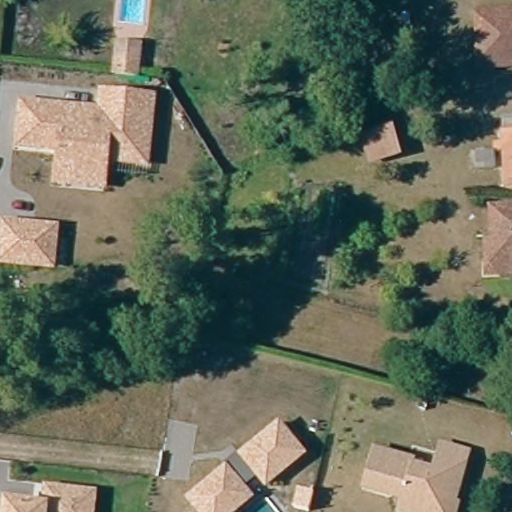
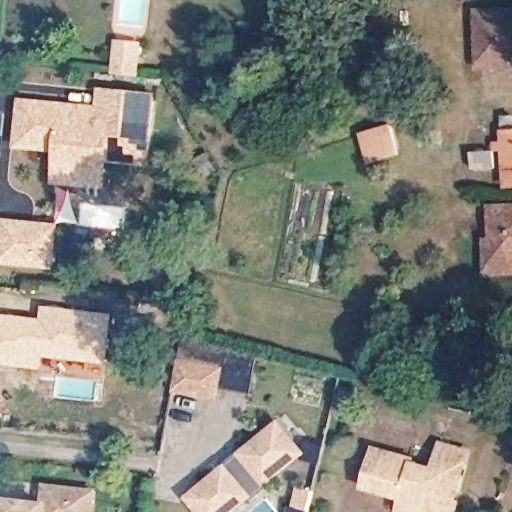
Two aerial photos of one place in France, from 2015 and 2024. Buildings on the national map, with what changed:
unchanged [(512,9),(512,64),(493,65),(491,10),(512,9)]
unchanged [(493,65),(475,66),(472,11),(491,10),(493,65)]
unchanged [(115,73),(118,42),(138,44),(135,75),(115,73)]
unchanged [(149,168),(109,162),(106,191),(55,186),(57,154),(15,149),(20,98),(98,104),(100,88),(157,93),(149,168)]
unchanged [(507,150),(499,150),(499,144),(506,144),(506,132),(506,117),(512,117),(512,186),(508,186),(507,150)]
unchanged [(398,153),(368,163),(359,133),(388,123),(398,153)]
unchanged [(478,170),(478,154),(494,155),(493,170),(478,170)]
unchanged [(483,247),(483,243),(491,243),(490,210),(512,210),(512,278),(485,279),(484,264),(483,247)]
unchanged [(0,263),(0,236),(2,219),(60,224),(56,269),(0,263)]
new [(0,315),(41,319),(44,307),(113,315),(109,364),(44,358),(44,371),(0,365),(0,315)]
new [(176,363),(203,369),(198,396),(171,390),(176,363)]
unchanged [(267,489),(257,477),(246,487),(256,498),(238,512),(199,512),(187,498),(278,420),(308,454),(267,489)]
unchanged [(416,463),(433,467),(440,441),(472,450),(459,502),(462,503),(459,512),(397,512),(400,500),(362,489),(374,447),(417,457),(416,463)]
new [(39,489),(86,495),(85,510),(0,511),(0,503),(37,507),(39,489)]
unchanged [(84,512),(0,512),(0,511),(85,510),(84,512)]

